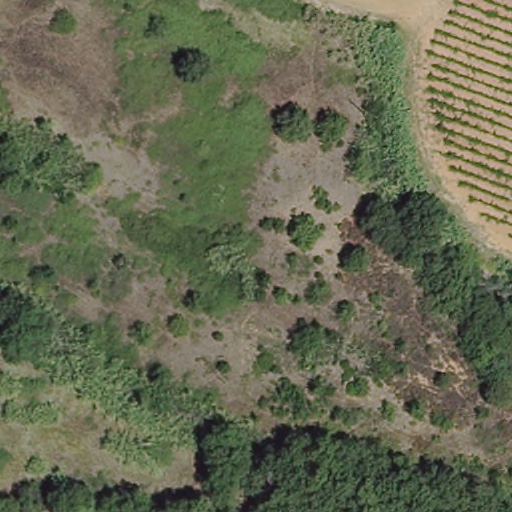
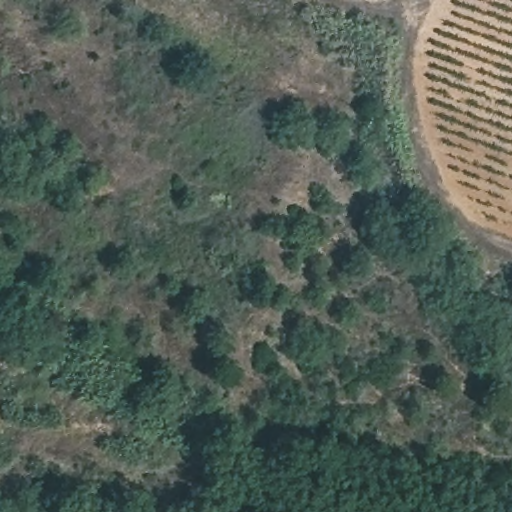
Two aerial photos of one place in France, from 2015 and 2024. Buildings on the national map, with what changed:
[]

